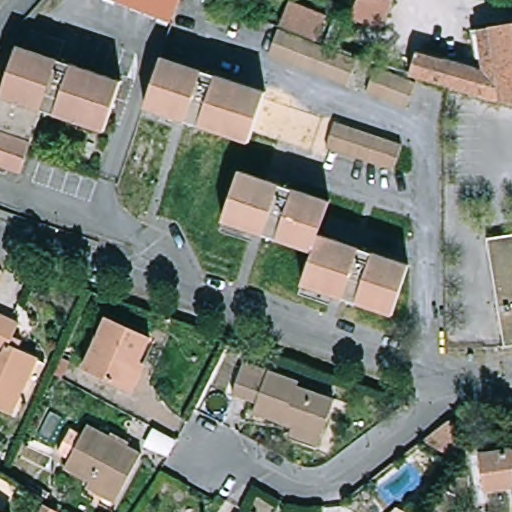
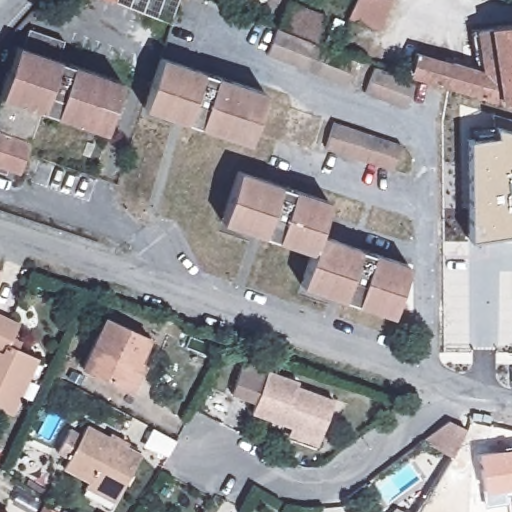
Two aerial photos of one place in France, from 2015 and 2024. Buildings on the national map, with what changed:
unchanged [(173,23),(112,0),(182,0),(173,23)]
unchanged [(379,30),(351,18),(358,1),(358,0),(391,0),(379,30)]
unchanged [(281,25),(291,1),(329,15),(320,40),(281,25)]
unchanged [(512,24),(512,102),(445,82),(442,83),(407,70),(417,50),(479,71),(478,65),(484,61),(479,31),(512,24)]
unchanged [(32,47),(38,29),(65,39),(59,57),(121,78),(103,131),(43,110),(21,175),(0,168),(0,97),(19,43),(32,47)]
unchanged [(273,53),(281,31),(356,61),(348,83),(273,53)]
unchanged [(147,108),(144,107),(161,55),(166,56),(205,69),(218,72),(265,88),(248,141),(201,126),(187,122),(147,108)]
unchanged [(368,91),(376,70),(414,84),(406,106),(368,91)]
new [(469,238),(467,138),(496,134),(493,124),(492,113),(512,119),(512,232),(469,238)]
unchanged [(328,147),(336,123),(399,144),(391,168),(328,147)]
unchanged [(308,284),(319,252),(278,237),(265,233),(226,220),(244,170),(282,183),(295,187),(336,202),(326,234),(365,247),(377,251),(414,264),(396,315),(360,302),(347,298),(308,284)]
unchanged [(512,233),(512,345),(507,345),(489,236),(512,233)]
unchanged [(0,402),(0,309),(23,319),(14,339),(45,354),(18,410),(0,402)]
unchanged [(155,337),(141,364),(148,367),(135,392),(83,366),(110,314),(155,337)]
unchanged [(68,376),(58,371),(65,354),(76,360),(68,376)]
unchanged [(294,431),(298,420),(261,408),(265,399),(240,390),(250,360),(301,377),(299,385),(340,399),(330,430),(326,442),(294,431)]
unchanged [(455,456),(423,442),(441,429),(453,420),(470,428),(455,456)]
unchanged [(88,486),(91,479),(64,463),(85,425),(142,456),(120,495),(116,502),(88,486)]
unchanged [(492,489),(487,452),(512,449),(512,485),(492,489)]
unchanged [(42,512),(45,505),(57,512),(42,512)]
unchanged [(0,512),(0,507),(8,512),(0,512)]

